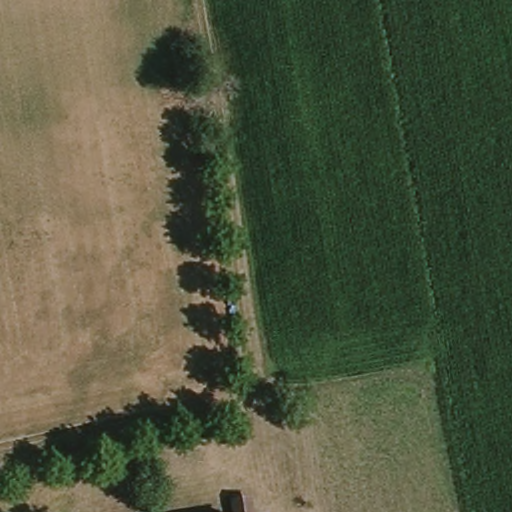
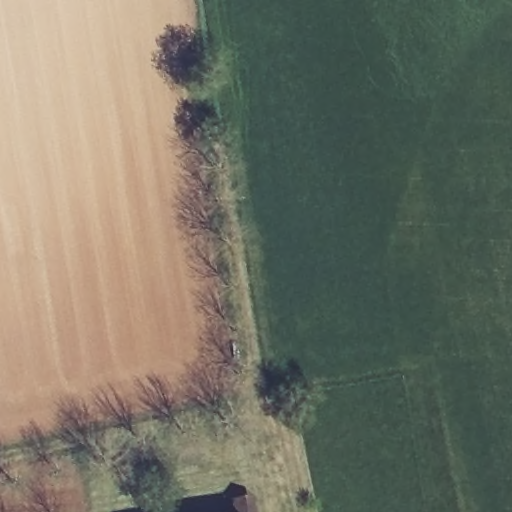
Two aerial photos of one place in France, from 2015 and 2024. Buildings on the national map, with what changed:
unchanged [(264,492),(266,510),(254,512),(234,512),(232,495),(264,492)]

